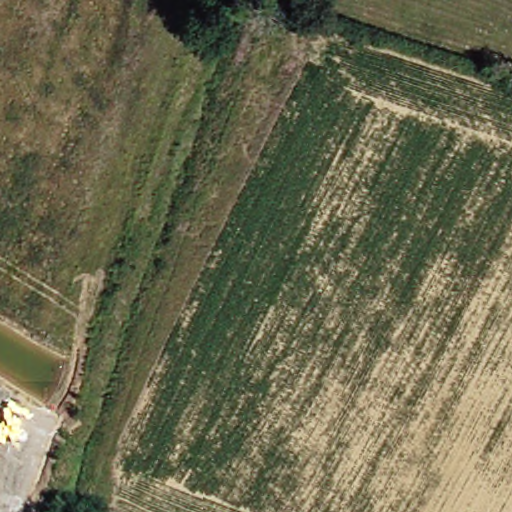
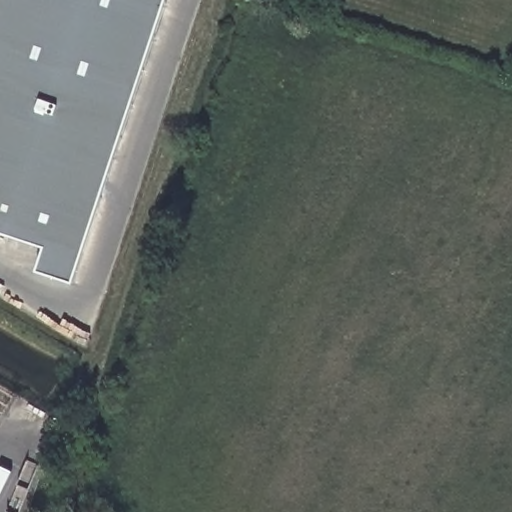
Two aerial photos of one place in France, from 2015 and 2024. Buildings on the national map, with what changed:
new [(37,272),(45,247),(0,233),(0,0),(167,0),(72,283),(37,272)]

